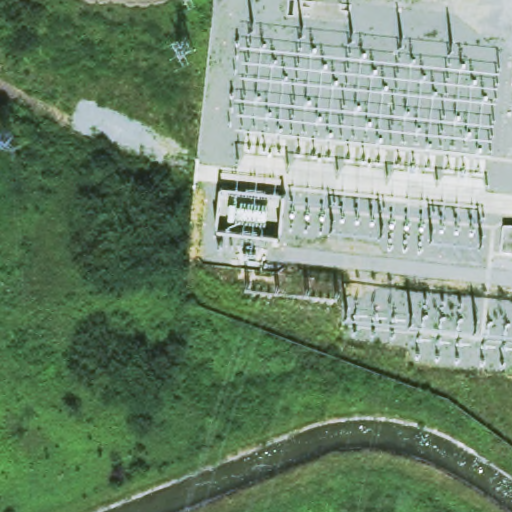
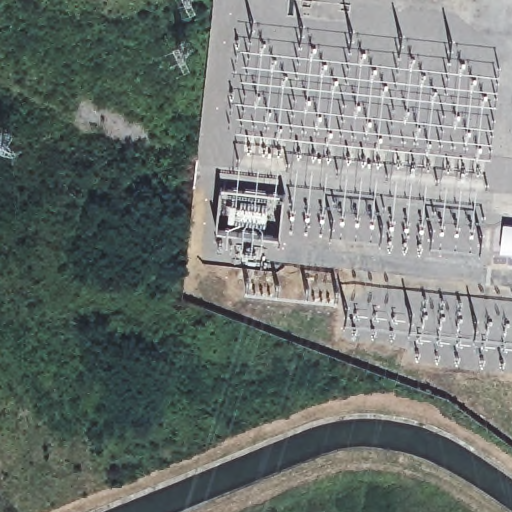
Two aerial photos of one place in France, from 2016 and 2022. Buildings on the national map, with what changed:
unchanged [(512,224),(512,251),(502,250),(506,223),(512,224)]

